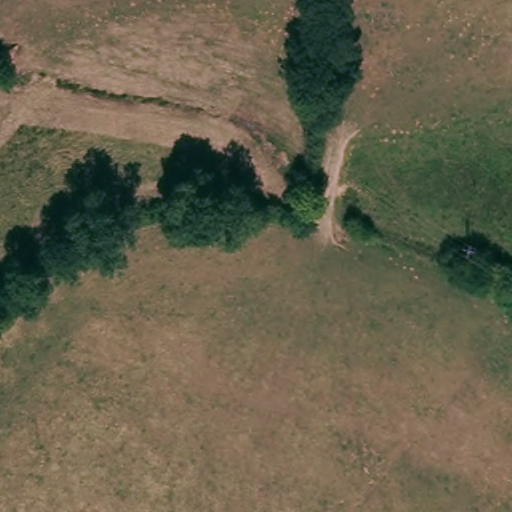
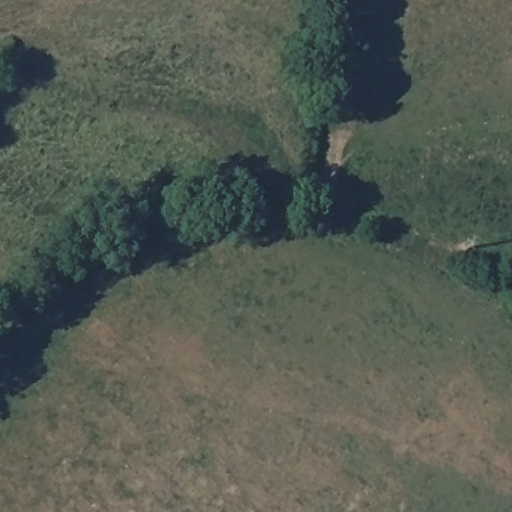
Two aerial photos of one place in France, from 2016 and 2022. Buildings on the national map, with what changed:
[]

